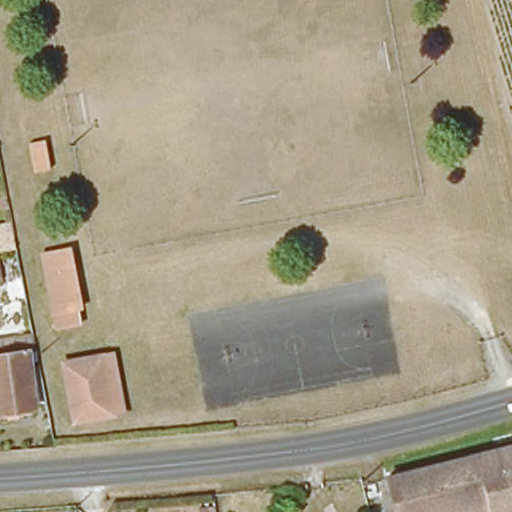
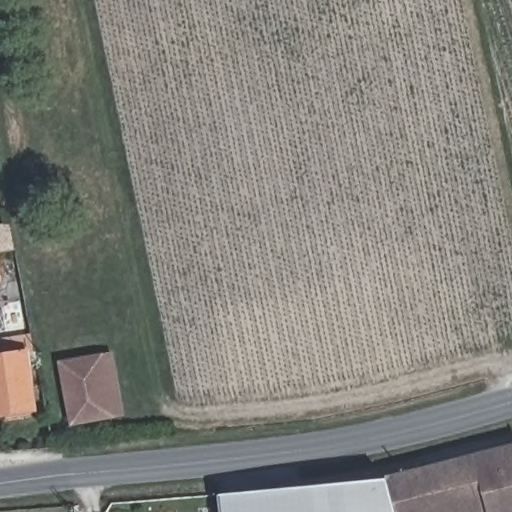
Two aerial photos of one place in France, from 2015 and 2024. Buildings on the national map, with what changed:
demolished [(35,176),(30,147),(44,145),(49,174),(35,176)]
demolished [(59,332),(45,255),(69,251),(82,327),(59,332)]
unchanged [(1,282),(0,282),(0,277),(1,282)]
unchanged [(0,418),(0,346),(34,340),(35,347),(36,357),(24,358),(31,413),(0,418)]
unchanged [(65,366),(102,360),(115,357),(125,417),(113,420),(75,427),(65,366)]
unchanged [(385,480),(512,447),(512,512),(393,512),(385,480)]
new [(393,512),(219,512),(217,495),(385,480),(393,512)]

